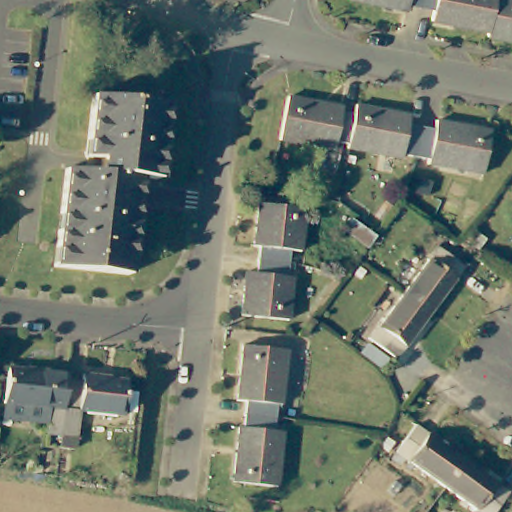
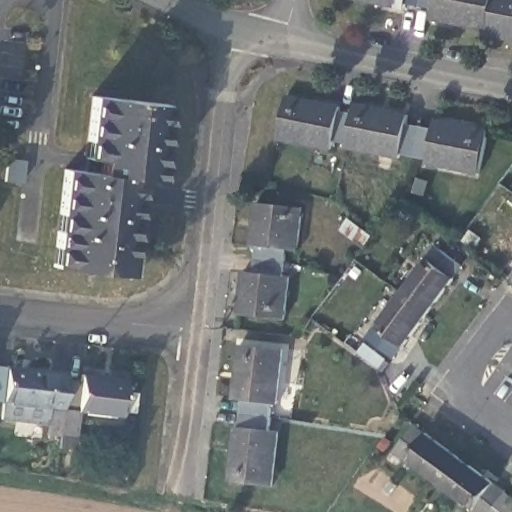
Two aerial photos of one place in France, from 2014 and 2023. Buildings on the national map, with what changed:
unchanged [(405,2),(404,9),(394,7),(350,0),(421,0),(421,5),(405,2)]
unchanged [(432,17),(433,7),(421,5),(421,0),(493,0),(488,27),(432,17)]
unchanged [(512,39),(487,34),(488,27),(493,0),(512,0),(512,39)]
unchanged [(172,100),(162,175),(145,172),(132,270),(59,261),(72,163),(89,165),(99,90),(172,100)]
unchanged [(342,143),(334,141),(333,150),(279,140),(287,94),(349,106),(342,143)]
unchanged [(352,102),(407,110),(407,121),(421,123),(414,156),(401,154),(400,159),(348,150),(348,144),(342,143),(349,106),(352,102)]
unchanged [(480,172),(432,164),(428,159),(414,156),(421,123),(433,125),(433,119),(487,129),(480,172)]
unchanged [(255,248),(250,245),(255,199),(301,205),(296,250),(287,248),(286,261),(254,256),(255,248)]
unchanged [(398,290),(436,240),(465,264),(427,312),(398,290)]
unchanged [(286,261),(284,272),(292,273),(286,318),(234,310),(240,265),(252,267),(254,256),(286,261)]
unchanged [(366,332),(398,290),(427,312),(393,355),(366,332)]
unchanged [(281,346),(275,402),(272,402),(271,416),(238,412),(240,404),(231,397),(236,341),(281,346)]
unchanged [(46,432),(47,425),(5,421),(10,362),(53,368),(52,373),(70,376),(64,433),(46,432)]
unchanged [(81,377),(82,367),(129,374),(125,416),(80,412),(77,434),(64,433),(70,376),(81,377)]
unchanged [(233,422),(237,423),(238,412),(271,416),(269,430),(272,430),(266,485),(226,481),(233,422)]
unchanged [(448,482),(417,461),(409,463),(396,453),(420,420),(468,455),(448,482)]
unchanged [(512,493),(498,512),(479,512),(478,511),(481,503),(448,482),(468,455),(512,487),(512,493)]

